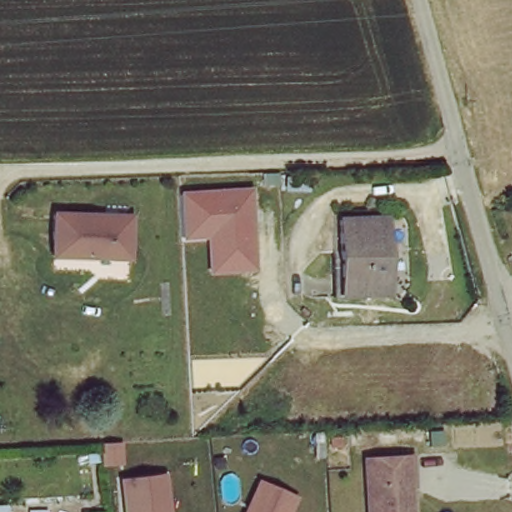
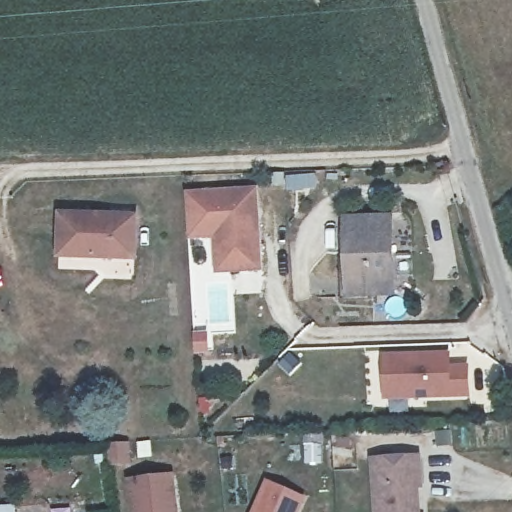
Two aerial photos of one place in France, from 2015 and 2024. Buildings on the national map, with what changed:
demolished [(300,181),(305,205),(272,212),(267,187),(300,181)]
unchanged [(255,189),(263,272),(215,276),(212,239),(187,240),(183,192),(255,189)]
unchanged [(137,262),(62,260),(63,219),(138,221),(137,262)]
unchanged [(351,300),(348,224),(395,222),(397,298),(351,300)]
new [(194,335),(207,335),(207,350),(195,351),(194,335)]
new [(382,353),(450,350),(451,365),(469,364),(470,398),(382,401),(382,353)]
unchanged [(367,457),(414,453),(417,483),(413,484),(416,512),(373,512),(367,457)]
unchanged [(179,512),(129,512),(125,479),(175,473),(179,512)]
unchanged [(268,480),(309,498),(302,512),(253,512),(268,480)]

